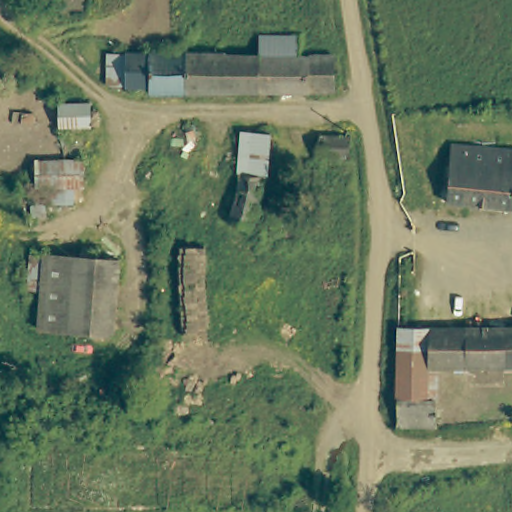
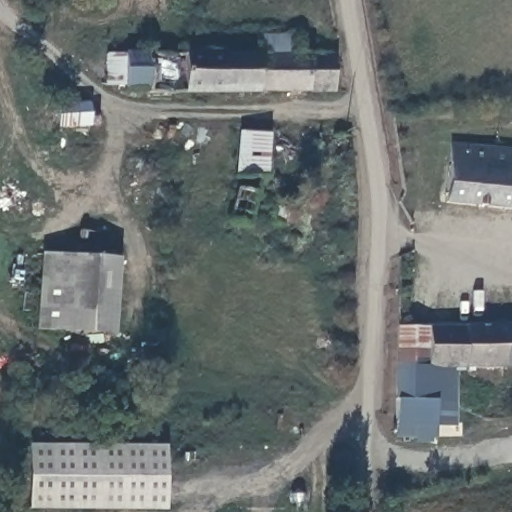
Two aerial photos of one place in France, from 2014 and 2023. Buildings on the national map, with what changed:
unchanged [(332,56),(332,92),(307,92),(257,92),(257,56),(256,37),(296,37),(297,37),(297,56),(307,56),(329,56),(332,56)]
unchanged [(183,52),(184,92),(146,92),(146,87),(124,88),(124,85),(106,86),(106,56),(124,56),(124,54),(183,52)]
unchanged [(224,52),(224,56),(257,56),(257,92),(184,92),(183,52),(224,52)]
unchanged [(54,100),(89,100),(89,124),(56,125),(54,100)]
unchanged [(316,130),(346,132),(346,153),(315,152),(316,130)]
unchanged [(228,222),(242,178),(239,178),(237,178),(240,134),(267,136),(264,179),(259,179),(244,227),(228,222)]
unchanged [(449,145),(512,150),(512,177),(509,210),(444,202),(449,145)]
unchanged [(26,291),(28,256),(43,257),(73,258),(69,332),(36,330),(39,292),(26,291)]
unchanged [(73,258),(117,261),(111,336),(69,332),(73,258)]
unchanged [(512,328),(512,366),(499,366),(499,369),(434,368),(434,427),(394,426),(395,328),(509,328),(512,328)]
new [(165,446),(166,512),(28,510),(29,445),(165,446)]

